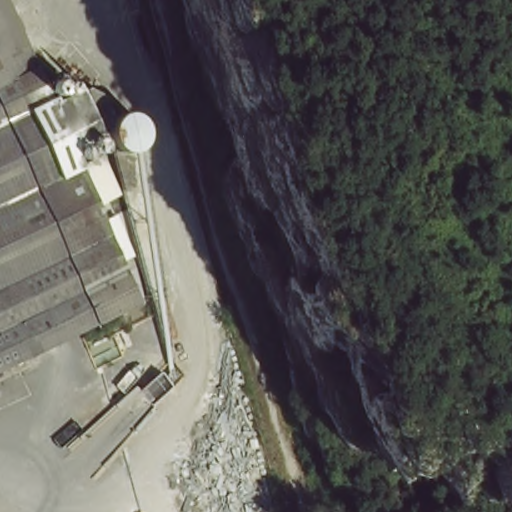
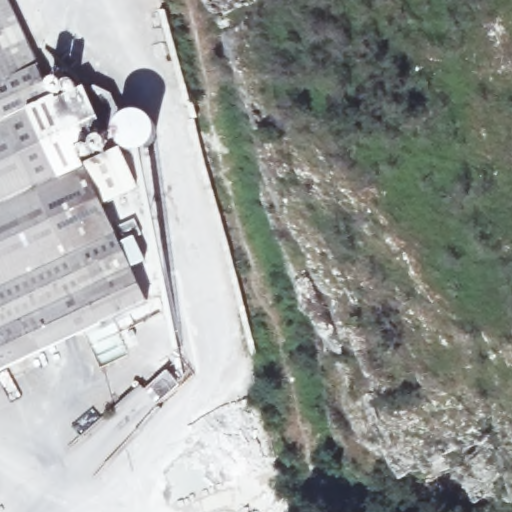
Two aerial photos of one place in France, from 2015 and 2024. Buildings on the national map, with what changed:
unchanged [(22,38),(50,99),(81,85),(103,95),(114,120),(68,141),(78,163),(90,192),(95,206),(139,301),(0,365),(0,20),(10,43),(22,38)]
unchanged [(121,109),(122,106),(128,103),(130,102),(133,101),(139,102),(142,102),(145,104),(149,106),(150,109),(153,112),(155,117),(155,121),(155,126),(154,127),(150,134),(147,136),(143,139),(137,140),(132,140),(127,139),(123,136),(120,134),(118,130),(117,126),(116,121),(116,117),(117,114),(119,110),(121,109)]
unchanged [(101,154),(118,196),(95,206),(90,192),(78,163),(101,154)]

